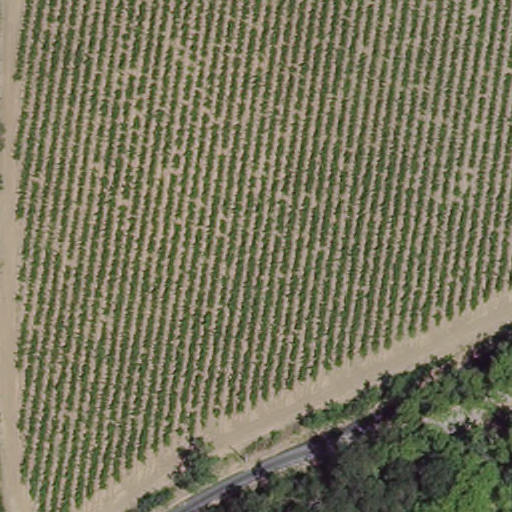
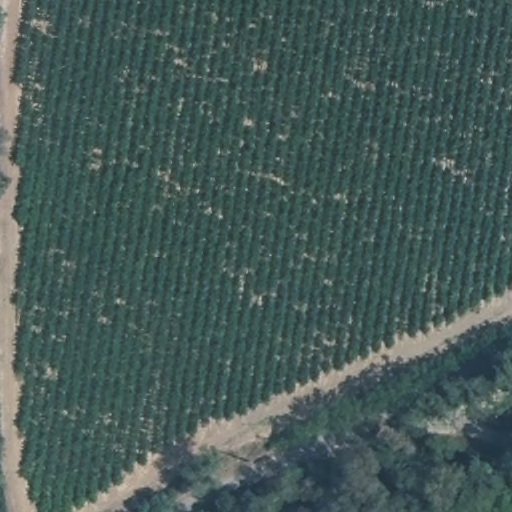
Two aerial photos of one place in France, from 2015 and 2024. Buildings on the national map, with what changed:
[]

